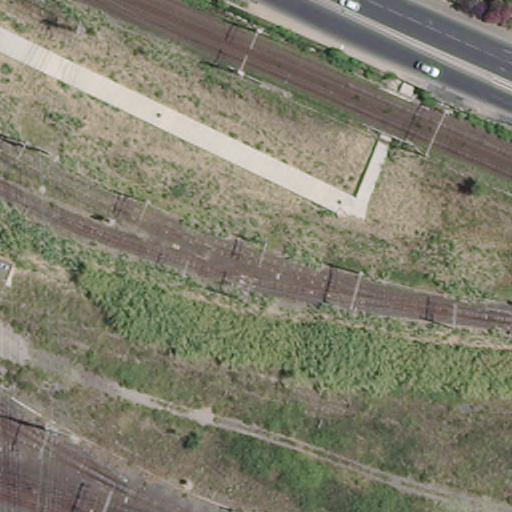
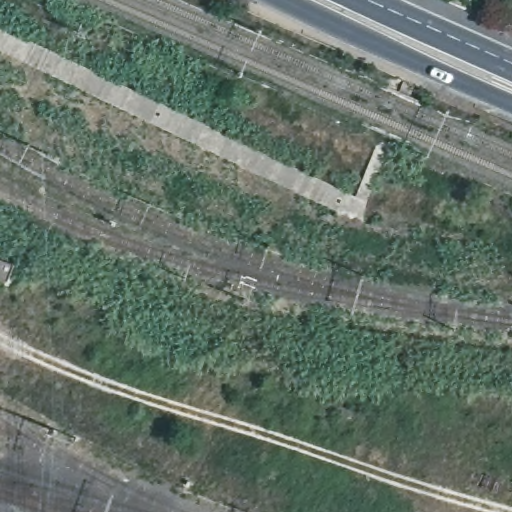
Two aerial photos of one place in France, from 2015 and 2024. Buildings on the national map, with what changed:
unchanged [(17,264),(9,285),(0,281),(0,257),(17,264)]

